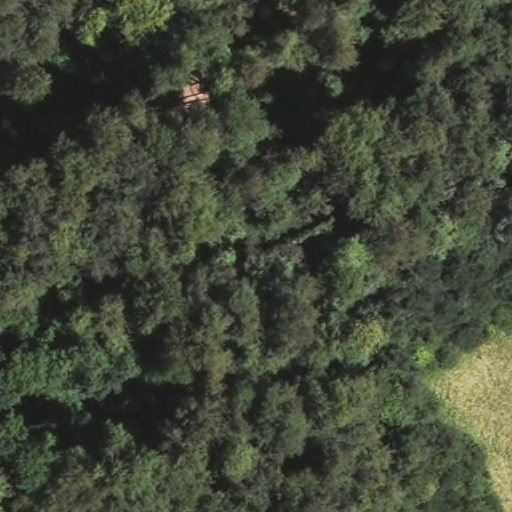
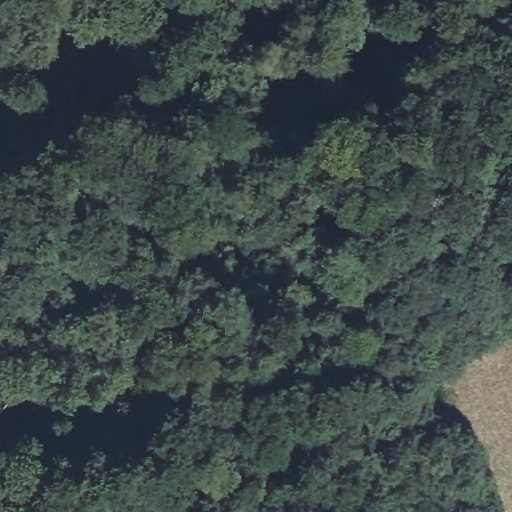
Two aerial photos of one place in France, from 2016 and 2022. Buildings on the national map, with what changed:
[]

